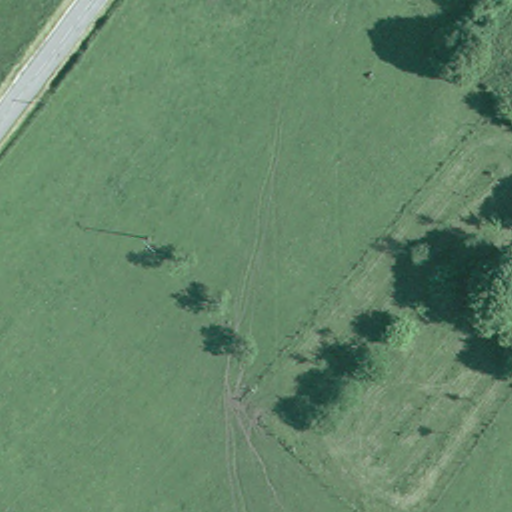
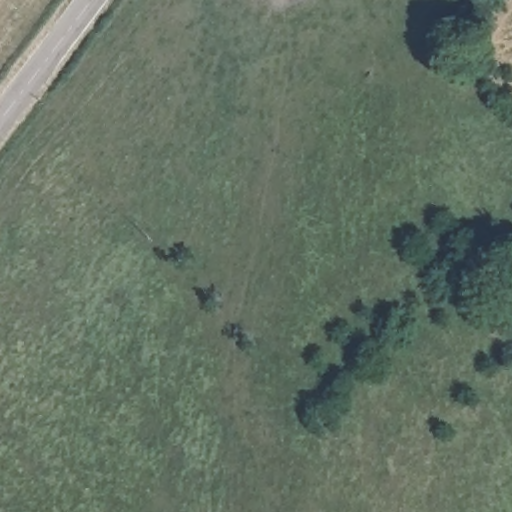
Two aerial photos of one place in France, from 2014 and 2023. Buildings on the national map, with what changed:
[]

